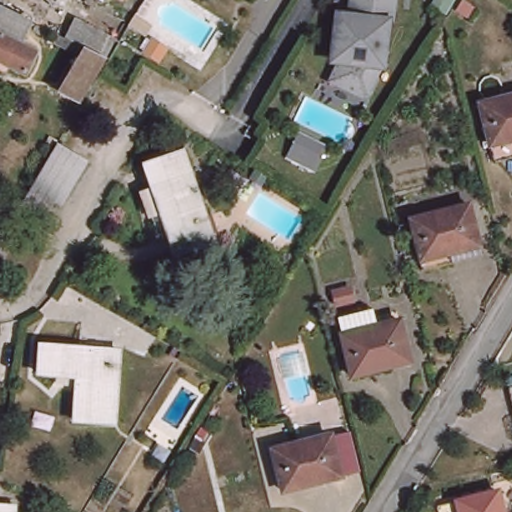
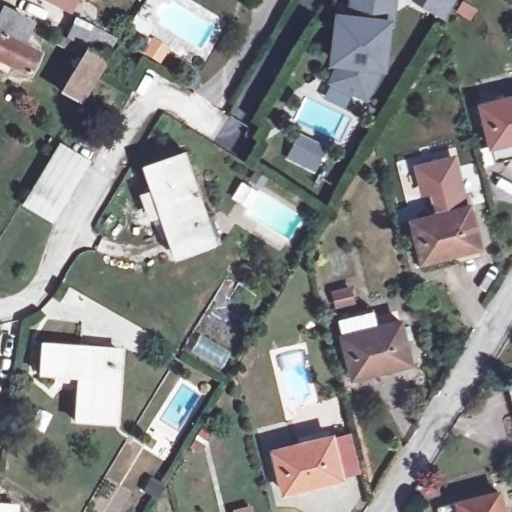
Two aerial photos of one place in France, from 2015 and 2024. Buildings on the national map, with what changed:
unchanged [(63,10),(44,0),(67,0),(63,10)]
unchanged [(354,80),(331,70),(342,53),(338,52),(346,5),(351,6),(352,0),(396,0),(396,4),(393,4),(381,62),(376,61),(364,85),(354,80)]
unchanged [(0,36),(0,10),(2,4),(31,25),(23,44),(39,54),(28,76),(0,61),(0,36)]
unchanged [(94,75),(78,103),(58,90),(78,50),(49,34),(56,21),(64,25),(71,11),(110,32),(103,45),(110,49),(94,75)]
unchanged [(499,157),(484,86),(512,80),(512,155),(499,157)]
unchanged [(83,164),(49,218),(24,203),(58,147),(83,164)]
unchanged [(215,243),(168,263),(138,168),(186,151),(215,243)]
new [(457,152),(471,202),(435,210),(429,193),(421,195),(413,164),(457,152)]
unchanged [(471,202),(479,256),(424,266),(414,214),(471,202)]
unchanged [(377,302),(379,324),(406,321),(412,366),(359,376),(349,330),(346,310),(377,302)]
unchanged [(117,425),(73,423),(78,375),(44,371),(48,348),(123,353),(117,425)]
unchanged [(503,393),(512,391),(512,437),(503,393)]
unchanged [(266,446),(318,436),(338,432),(348,477),(328,482),(275,493),(266,446)]
unchanged [(506,490),(511,512),(447,512),(444,503),(491,491),(506,490)]
unchanged [(17,512),(0,512),(0,508),(18,510),(17,512)]

